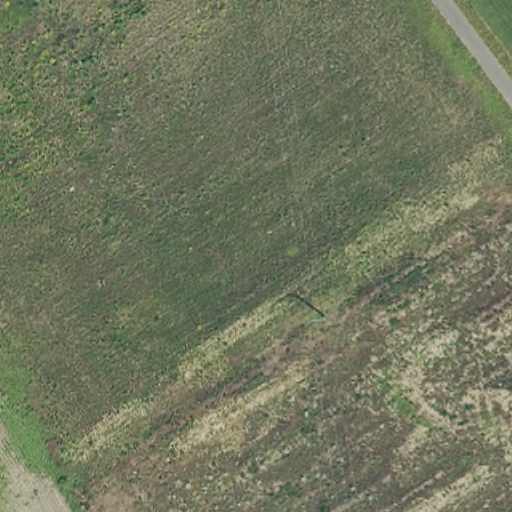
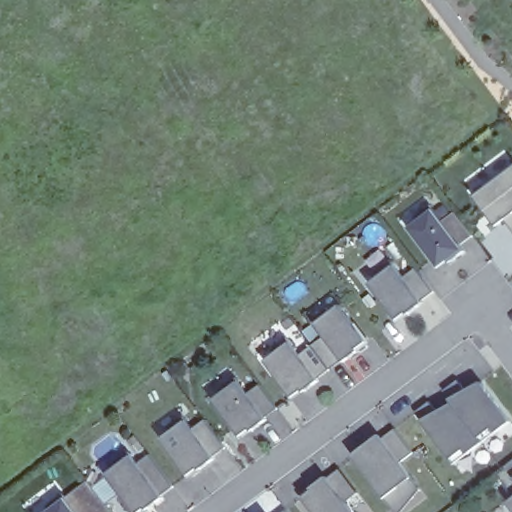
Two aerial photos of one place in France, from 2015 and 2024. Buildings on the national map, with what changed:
new [(488,213),(476,197),(512,171),(512,228),(506,221),(502,225),(498,227),(488,213)]
new [(420,221),(416,217),(432,206),(444,222),(456,213),(475,237),(462,246),(467,252),(453,263),(453,264),(452,264),(450,262),(443,268),(437,260),(435,261),(410,228),(420,221)]
new [(380,278),(377,274),(393,262),(405,278),(417,269),(436,293),(423,302),(425,304),(410,315),(411,315),(410,316),(408,313),(400,319),(395,311),(392,313),(371,285),(380,278)]
new [(357,350),(359,351),(345,362),(343,360),(332,368),(315,346),(325,335),(316,324),(340,305),(368,341),(357,350)]
new [(290,342),(301,356),(315,346),(332,368),(317,380),(293,397),(268,359),(290,342)]
new [(265,420),(252,430),(250,428),(241,435),(214,399),(238,381),(248,393),(260,384),(278,409),(265,420)]
new [(452,460),(417,413),(431,402),(438,412),(454,404),(445,392),(460,381),(467,391),(482,383),(512,422),(512,423),(497,434),(484,444),(470,455),(456,465),(452,460)]
new [(213,459),(200,469),(198,467),(189,474),(162,439),(186,420),(193,429),(205,419),(226,447),(213,459)]
new [(402,512),(397,512),(385,497),(352,455),(378,434),(381,438),(393,429),(411,453),(400,463),(410,478),(420,489),(402,512)]
new [(161,498),(146,508),(145,506),(138,512),(136,512),(107,473),(132,455),(138,462),(150,454),(174,487),(161,498)]
new [(512,464),(512,493),(498,474),(512,464)]
new [(302,495),(327,476),(340,468),(358,494),(347,505),(353,512),(315,512),(302,495)]
new [(50,511),(48,507),(64,495),(67,499),(90,482),(112,512),(49,512),(50,511)]
new [(509,503),(512,501),(512,507),(509,503)]
new [(285,510),(287,512),(283,512),(285,510)]

